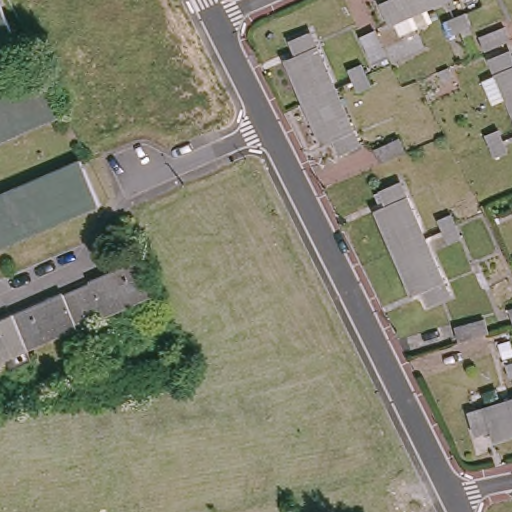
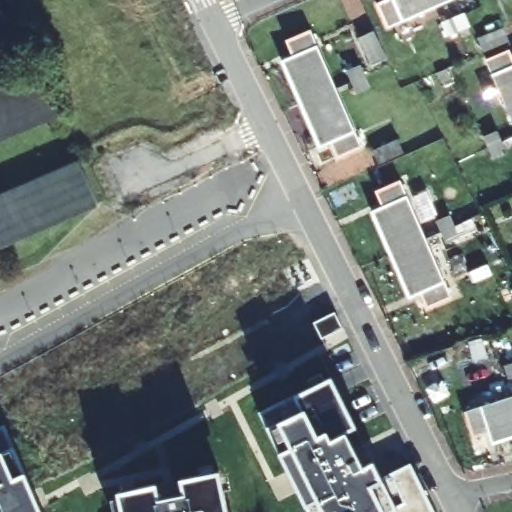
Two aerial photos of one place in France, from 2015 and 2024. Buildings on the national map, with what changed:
unchanged [(378,4),(386,0),(441,0),(387,24),(378,4)]
unchanged [(0,29),(0,4),(9,25),(0,29)]
unchanged [(442,22),(453,17),(465,12),(470,24),(459,29),(448,34),(442,22)]
unchanged [(505,50),(480,60),(475,48),(499,37),(505,50)]
unchanged [(287,70),(297,65),(291,51),(310,42),(329,82),(315,88),(320,97),(322,104),(305,112),(287,70)]
unchanged [(507,126),(483,69),(502,60),(509,76),(512,74),(512,136),(507,126)]
unchanged [(356,91),(351,80),(346,69),(359,63),(364,74),(369,85),(356,91)]
unchanged [(58,110),(0,135),(0,86),(40,69),(58,110)]
unchanged [(342,164),(335,148),(323,153),(305,112),(322,104),(320,97),(315,88),(329,82),(336,99),(361,156),(342,164)]
unchanged [(493,157),(488,146),(483,134),(496,129),(501,140),(505,151),(493,157)]
unchanged [(380,166),(373,153),(399,142),(405,156),(380,166)]
unchanged [(96,201),(0,241),(0,193),(79,160),(96,201)]
unchanged [(400,232),(408,251),(391,259),(373,217),(383,212),(376,197),(397,188),(414,226),(400,232)]
unchanged [(445,243),(440,231),(435,220),(448,215),(453,226),(458,237),(445,243)]
unchanged [(391,259),(408,251),(400,232),(414,226),(422,245),(447,301),(426,310),(420,295),(409,299),(391,259)]
demolished [(88,282),(87,280),(136,258),(150,290),(87,317),(73,288),(88,282)]
demolished [(60,291),(61,294),(73,288),(87,317),(25,344),(10,313),(60,291)]
new [(343,329),(322,339),(314,323),(335,312),(343,329)]
demolished [(25,344),(31,357),(0,371),(0,317),(10,313),(25,344)]
unchanged [(505,363),(512,360),(512,375),(508,377),(505,363)]
new [(331,376),(357,427),(346,432),(363,466),(373,461),(382,478),(410,464),(435,512),(308,512),(259,413),(331,376)]
unchanged [(508,395),(512,393),(512,406),(508,395)]
unchanged [(512,406),(512,429),(492,436),(488,424),(473,429),(467,408),(508,395),(512,406)]
new [(43,512),(0,512),(0,427),(5,425),(43,512)]
new [(157,484),(160,499),(183,494),(180,479),(220,470),(229,512),(122,512),(117,492),(157,484)]

